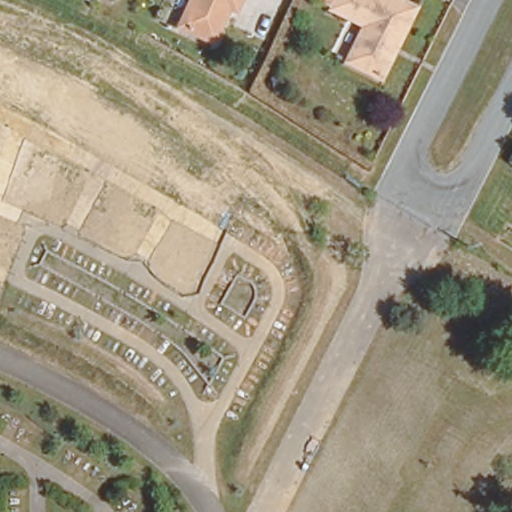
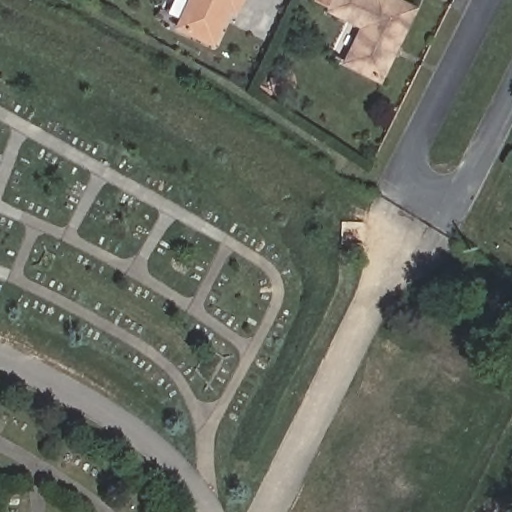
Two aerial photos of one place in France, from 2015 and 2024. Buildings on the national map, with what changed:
unchanged [(215,34),(179,19),(187,0),(238,0),(236,2),(230,0),(215,34)]
unchanged [(380,75),(345,56),(363,20),(334,5),(337,0),(406,0),(418,6),(398,41),(393,50),(380,75)]

